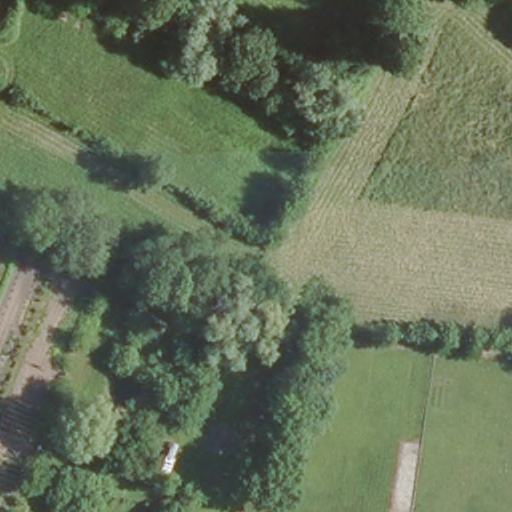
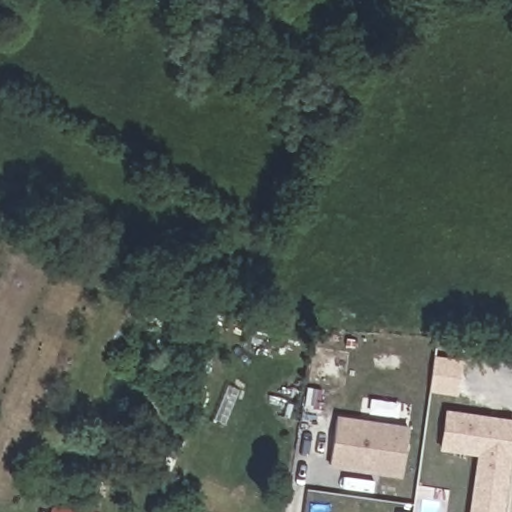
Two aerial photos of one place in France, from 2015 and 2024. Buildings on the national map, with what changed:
new [(456,361),(450,396),(429,392),(434,357),(456,361)]
new [(477,473),(474,473),(476,456),(443,451),(449,411),(512,421),(512,449),(503,512),(472,512),(477,473)]
new [(409,428),(403,475),(329,465),(335,418),(409,428)]

